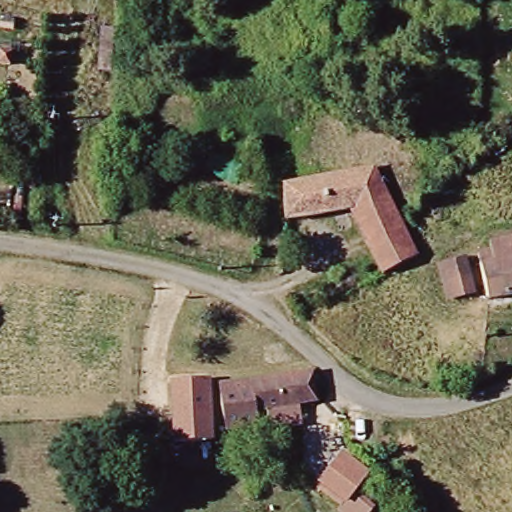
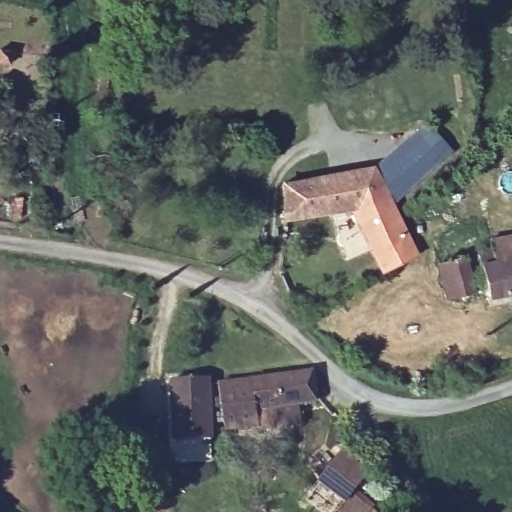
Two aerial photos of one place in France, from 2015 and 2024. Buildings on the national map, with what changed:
new [(389,207),(370,172),(425,125),(454,152),(389,207)]
unchanged [(389,275),(349,210),(288,225),(284,190),(370,172),(393,214),(419,255),(389,275)]
unchanged [(494,307),(483,262),(496,260),(492,241),(512,239),(512,303),(494,307)]
unchanged [(479,304),(454,309),(449,290),(437,291),(433,273),(459,268),(470,265),(479,304)]
unchanged [(314,401),(254,407),(255,432),(256,440),(228,443),(220,385),(312,372),(314,401)]
unchanged [(213,433),(177,435),(172,382),(209,380),(213,433)]
unchanged [(254,407),(301,402),(303,426),(255,432),(254,407)]
unchanged [(314,485),(342,450),(369,473),(355,491),(375,507),(371,512),(334,512),(339,505),(314,485)]

